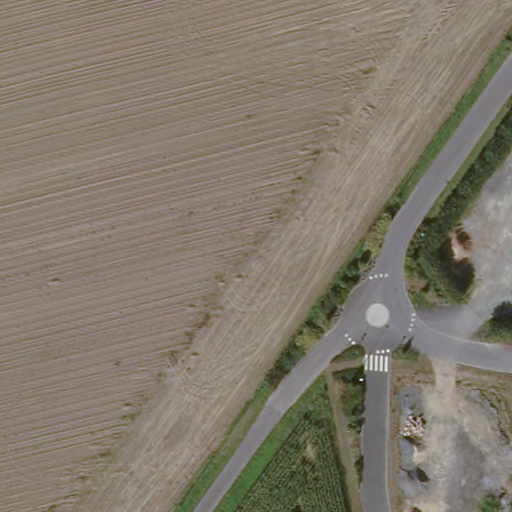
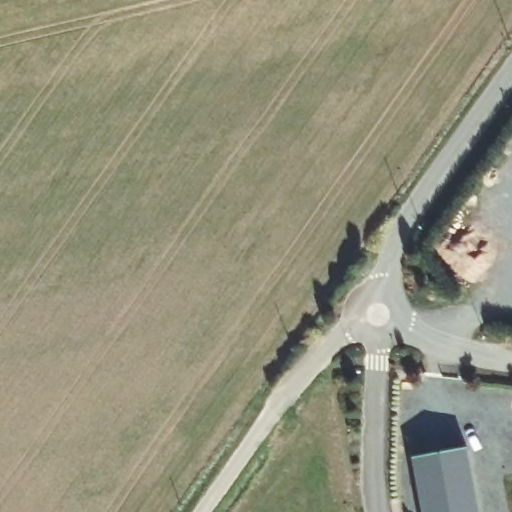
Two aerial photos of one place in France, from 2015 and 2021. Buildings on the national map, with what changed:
new [(465,451),(477,512),(421,512),(411,462),(465,451)]

